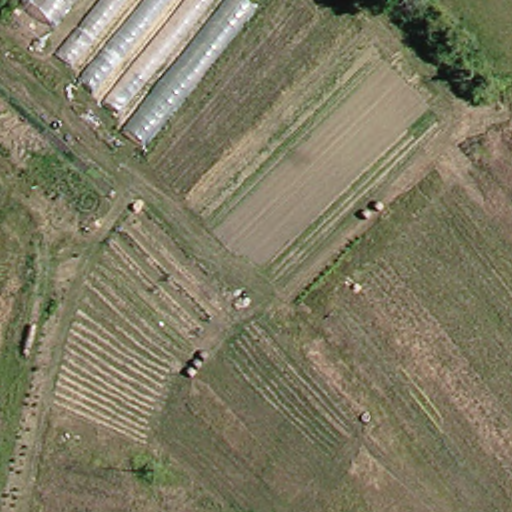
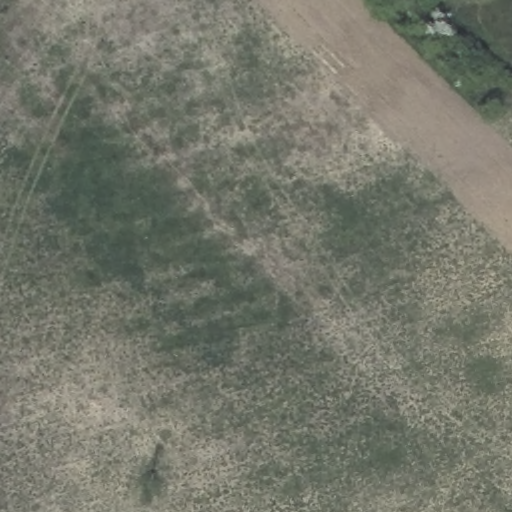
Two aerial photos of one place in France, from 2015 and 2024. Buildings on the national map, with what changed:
demolished [(35,42),(6,20),(22,0),(68,0),(35,42)]
demolished [(105,0),(243,0),(255,12),(144,151),(54,59),(105,0)]

